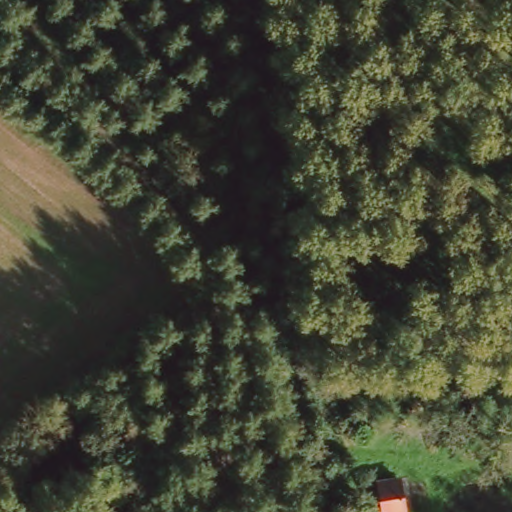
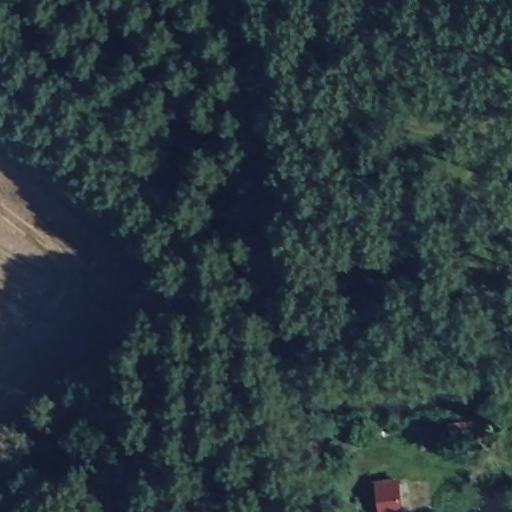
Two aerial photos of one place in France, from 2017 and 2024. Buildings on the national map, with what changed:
unchanged [(405,492),(408,512),(378,512),(375,497),(405,492)]

